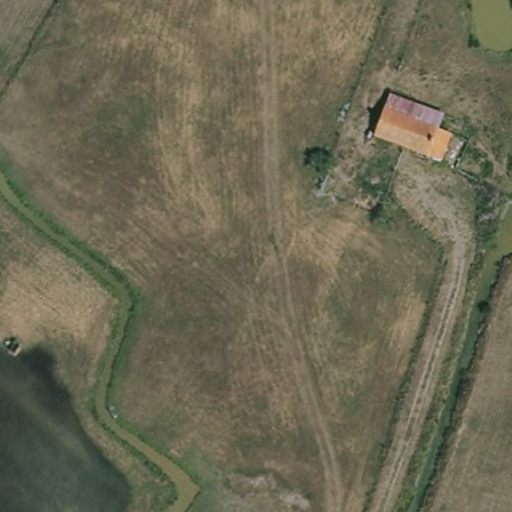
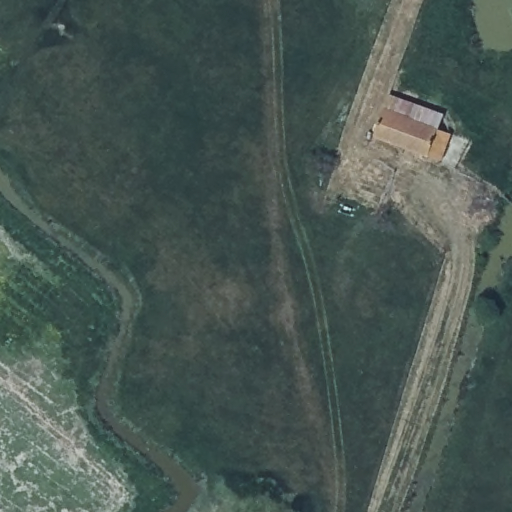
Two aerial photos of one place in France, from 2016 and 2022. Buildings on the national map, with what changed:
unchanged [(374,138),(391,94),(445,114),(440,130),(454,135),(444,162),(374,138)]

